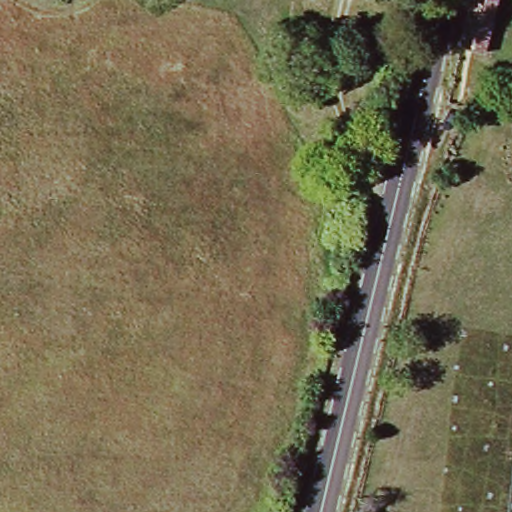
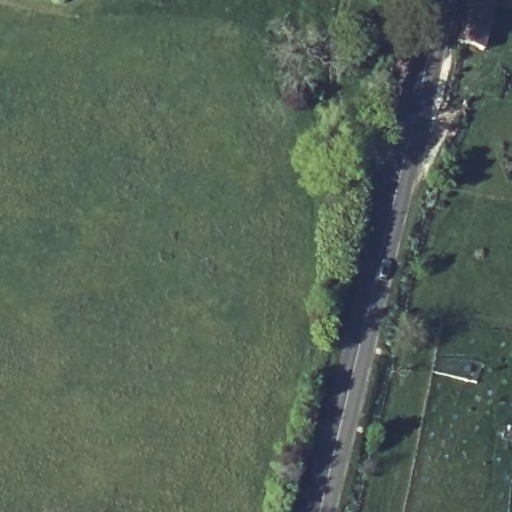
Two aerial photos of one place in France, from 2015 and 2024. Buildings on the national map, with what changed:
unchanged [(495,33),(501,35),(497,52),(486,52),(483,66),(460,60),(473,0),(503,0),(495,33)]

